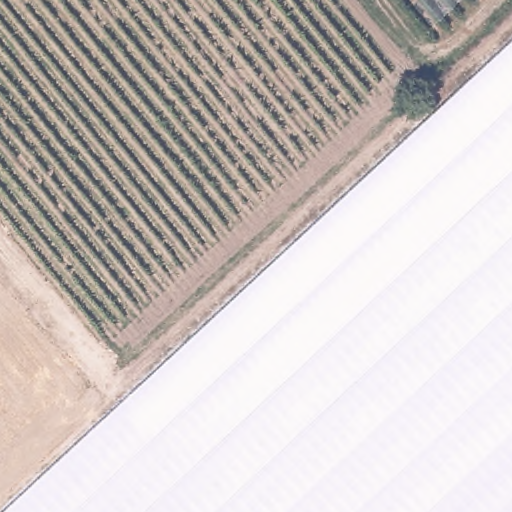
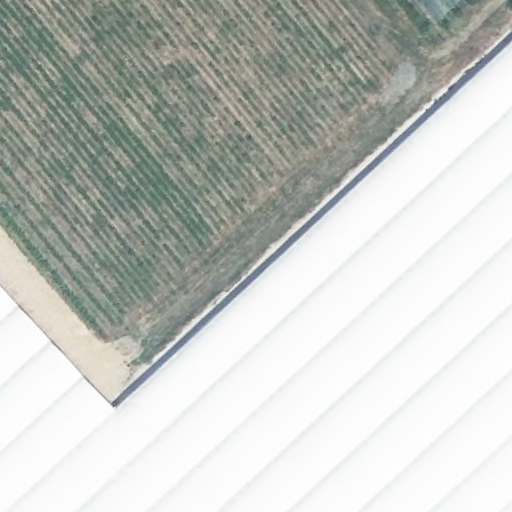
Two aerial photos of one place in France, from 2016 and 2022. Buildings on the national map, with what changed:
unchanged [(512,512),(1,512),(512,41),(512,512)]
new [(1,512),(0,512),(0,287),(112,409),(1,512)]

